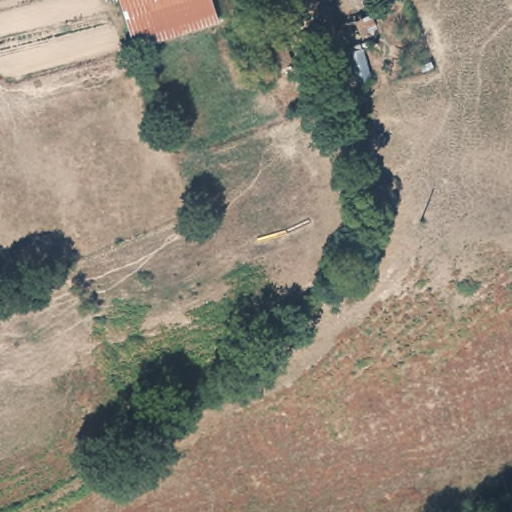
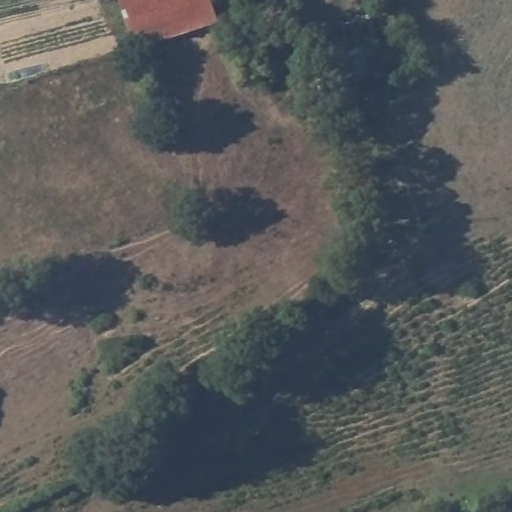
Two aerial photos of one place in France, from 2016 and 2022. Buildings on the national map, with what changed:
unchanged [(116,0),(201,0),(206,30),(146,40),(124,44),(116,0)]
unchanged [(361,51),(368,84),(350,89),(343,56),(361,51)]

